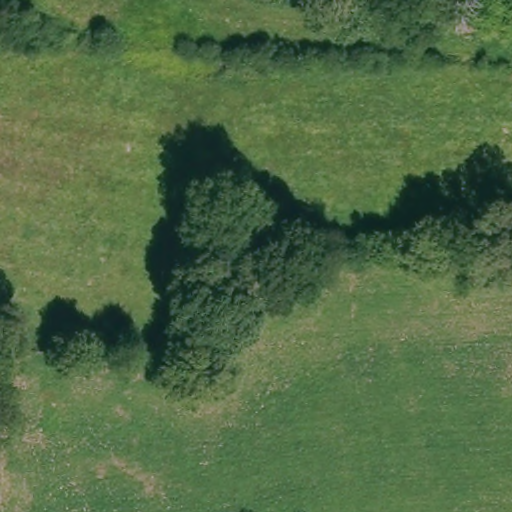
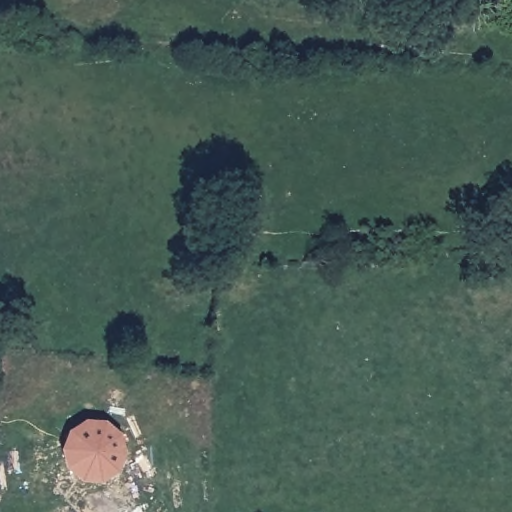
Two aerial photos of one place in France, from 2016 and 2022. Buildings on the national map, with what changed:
new [(69,433),(84,423),(101,425),(115,436),(120,453),(113,470),(98,479),(80,478),(66,467),(62,450),(69,433)]

